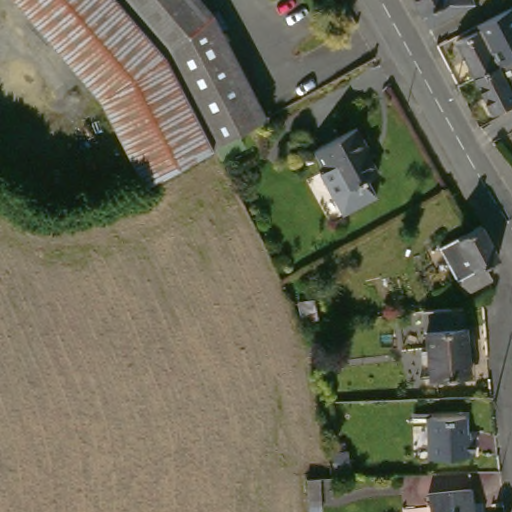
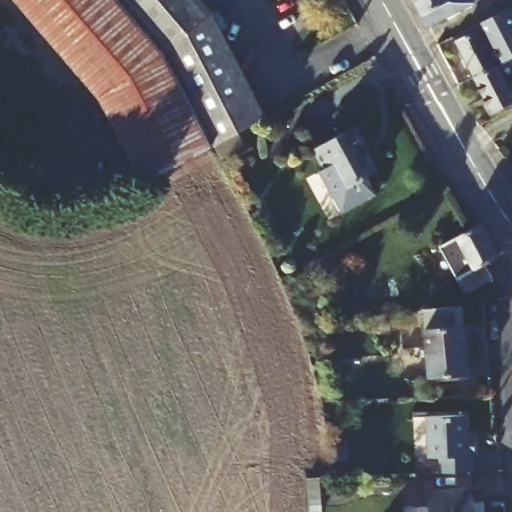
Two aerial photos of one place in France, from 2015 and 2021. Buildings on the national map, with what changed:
unchanged [(218,147),(154,182),(111,99),(24,0),(126,0),(169,50),(218,146),(218,147)]
unchanged [(207,0),(220,14),(273,116),(255,126),(221,145),(169,50),(126,0),(207,0)]
unchanged [(480,0),(483,4),(435,27),(420,0),(480,0)]
unchanged [(462,42),(495,26),(501,23),(498,16),(499,15),(512,9),(512,60),(480,77),(462,42)]
unchanged [(512,60),(512,84),(512,85),(512,106),(498,113),(480,77),(512,60)]
unchanged [(388,169),(373,176),(355,186),(339,157),(330,142),(367,127),(388,169)]
unchanged [(355,186),(373,176),(382,195),(345,213),(321,168),(339,157),(355,186)]
unchanged [(444,245),(465,236),(485,223),(504,257),(490,264),(498,278),(470,293),(444,245)]
unchanged [(429,306),(462,303),(464,322),(471,321),(475,369),(435,373),(429,306)]
unchanged [(466,413),(469,455),(431,457),(427,415),(466,413)]
unchanged [(434,491),(477,487),(479,512),(435,512),(434,491)]

